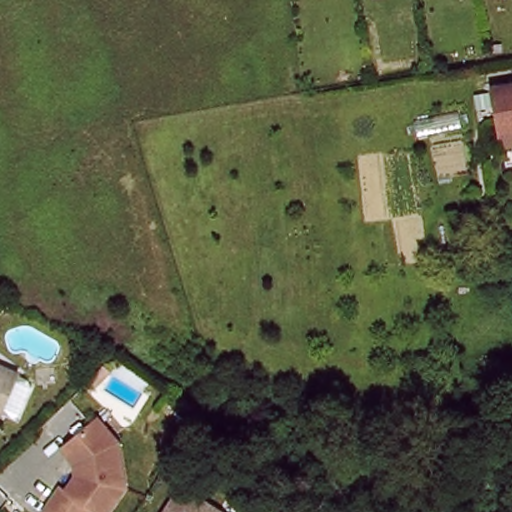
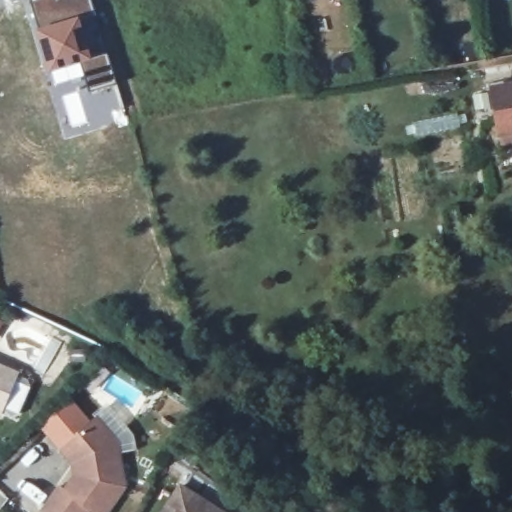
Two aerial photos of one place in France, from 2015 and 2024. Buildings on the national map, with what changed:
new [(113,87),(85,95),(76,63),(48,71),(27,2),(34,0),(47,0),(48,4),(58,1),(58,0),(88,0),(113,87)]
unchanged [(512,88),(512,138),(498,140),(490,92),(512,88)]
unchanged [(15,383),(26,387),(28,394),(17,421),(10,424),(0,420),(0,374),(15,381),(15,383)]
unchanged [(87,512),(42,512),(58,490),(63,493),(73,478),(72,465),(60,451),(76,437),(95,421),(115,445),(122,489),(107,512),(87,512)]
unchanged [(219,512),(165,512),(180,487),(219,512)]

